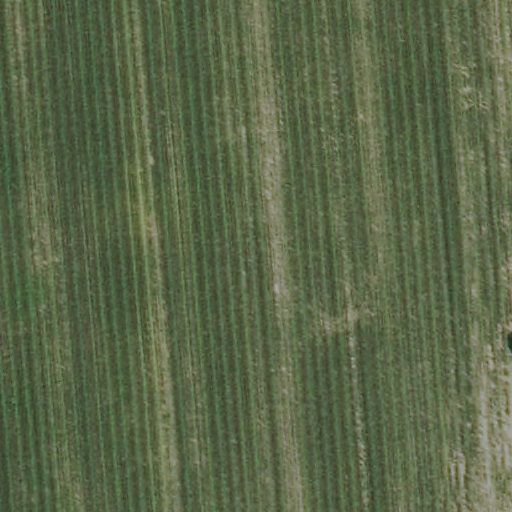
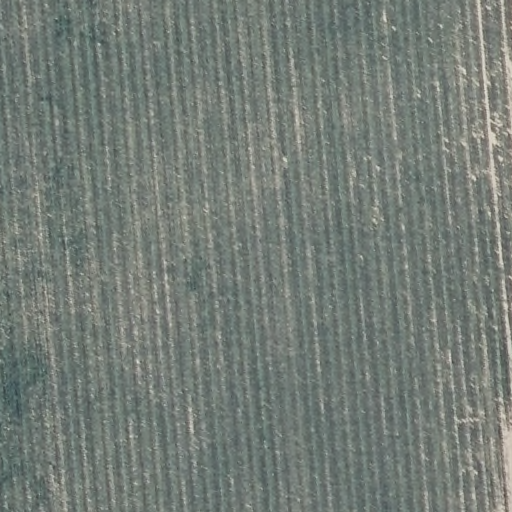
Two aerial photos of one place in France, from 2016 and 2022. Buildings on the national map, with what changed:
[]

